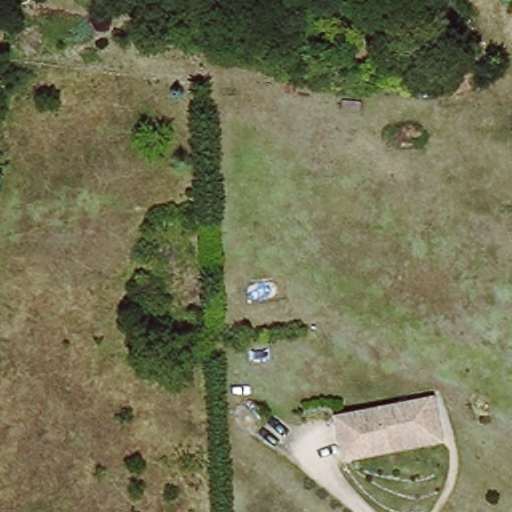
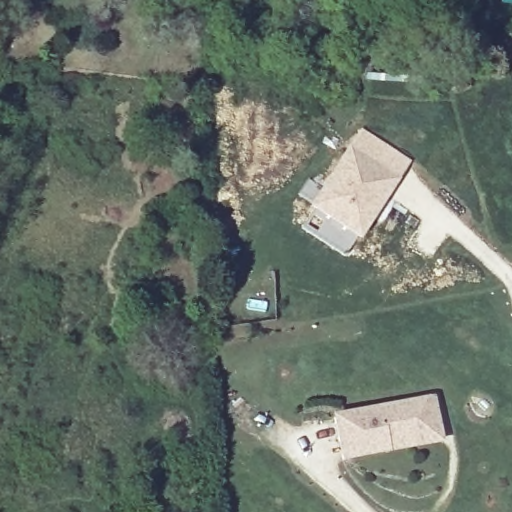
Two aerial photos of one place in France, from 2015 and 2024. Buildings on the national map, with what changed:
unchanged [(441,77),(432,44),(461,38),(467,60),(455,64),(456,74),(441,77)]
new [(353,150),(401,181),(363,238),(316,207),(353,150)]
unchanged [(332,420),(415,400),(431,397),(440,441),(387,452),(341,462),(332,420)]

